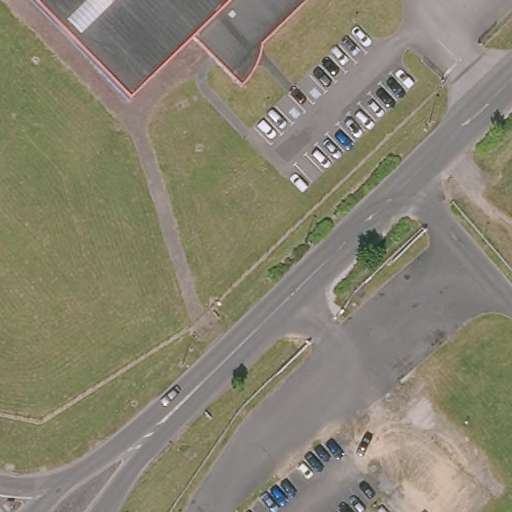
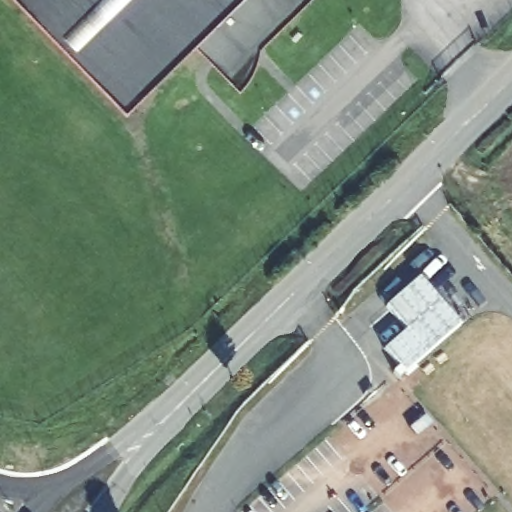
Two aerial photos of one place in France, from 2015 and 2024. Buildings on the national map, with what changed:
unchanged [(256,52),(260,56),(251,70),(243,78),(199,35),(136,98),(37,0),(309,0),(256,52)]
new [(459,326),(405,373),(384,350),(407,331),(387,307),(419,279),(459,326)]

